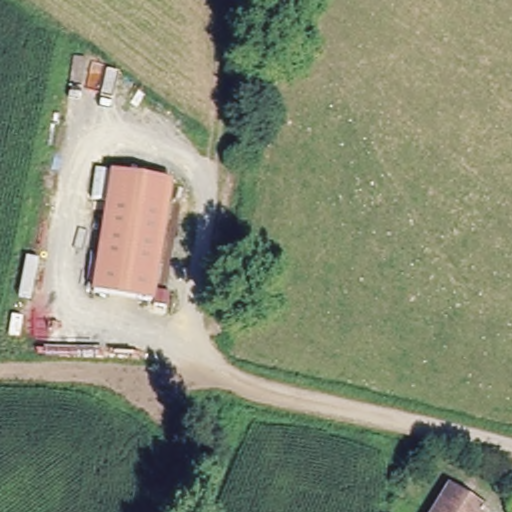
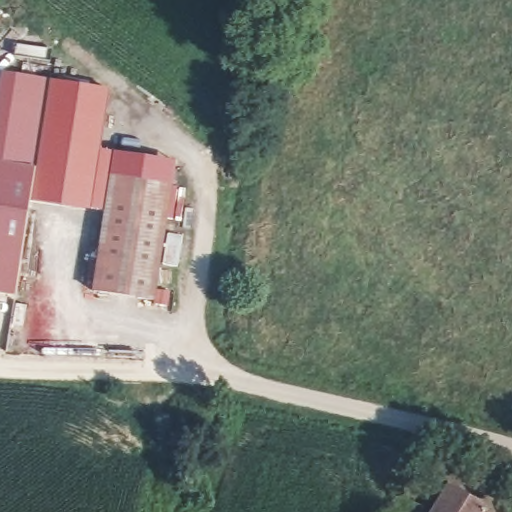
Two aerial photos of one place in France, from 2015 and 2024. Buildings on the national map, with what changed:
new [(0,162),(0,82),(2,72),(51,81),(36,167),(0,162)]
new [(16,296),(0,294),(0,162),(36,167),(51,81),(110,90),(100,150),(112,152),(110,167),(104,211),(31,200),(16,296)]
new [(170,175),(110,167),(112,152),(177,160),(154,295),(170,175)]
unchanged [(154,295),(94,286),(110,167),(170,175),(154,295)]
unchanged [(451,494),(481,512),(439,512),(451,494)]

